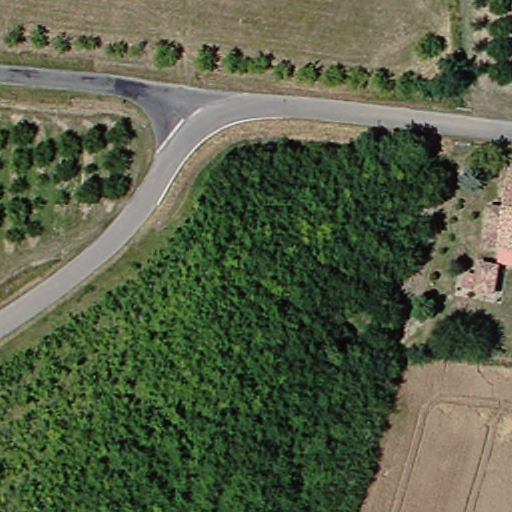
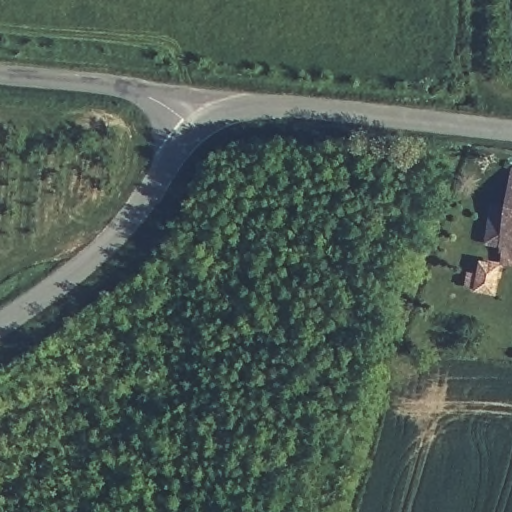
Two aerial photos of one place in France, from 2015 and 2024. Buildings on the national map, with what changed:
unchanged [(491,202),(509,204),(512,185),(512,251),(501,249),(485,246),(491,202)]
unchanged [(499,297),(480,294),(480,292),(470,291),(472,277),(483,279),(485,267),(503,270),(499,297)]

